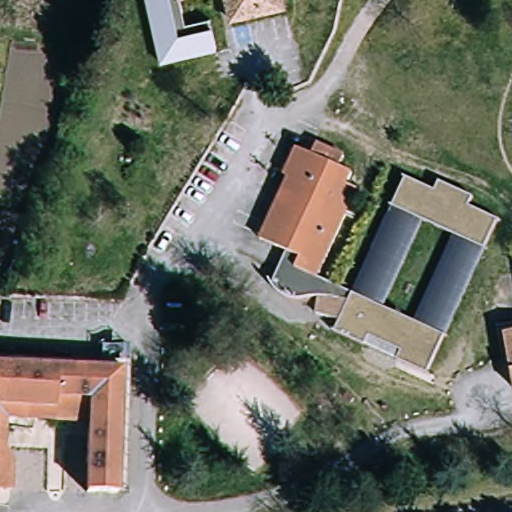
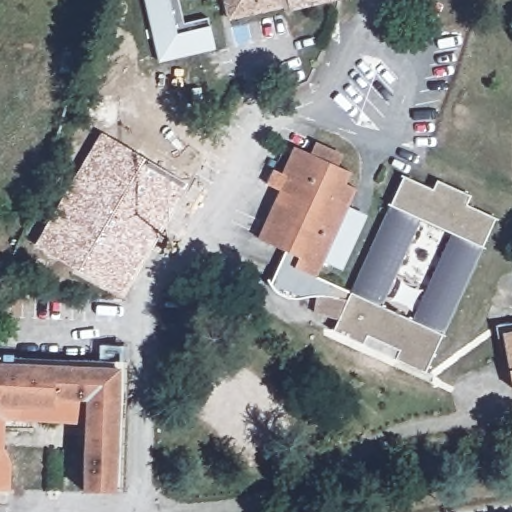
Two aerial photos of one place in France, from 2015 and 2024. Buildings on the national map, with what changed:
unchanged [(160,64),(145,0),(178,0),(184,24),(210,18),(216,50),(160,64)]
unchanged [(231,0),(286,0),(288,5),(235,20),(231,0)]
new [(286,12),(285,5),(288,5),(286,0),(341,0),(286,12)]
new [(121,296),(35,246),(101,132),(188,182),(121,296)]
unchanged [(293,262),(298,254),(288,249),(262,238),(294,147),(312,154),(317,145),(345,154),(342,166),(355,171),(349,187),(360,189),(318,273),(293,262)]
unchanged [(358,291),(413,182),(442,195),(445,185),(483,200),(479,210),(509,222),(435,381),(338,338),(354,309),(336,304),(325,304),(303,307),(287,301),(281,295),(273,281),(288,249),(298,254),(293,262),(318,273),(358,291)]
unchanged [(504,335),(512,334),(512,385),(504,335)]
unchanged [(123,490),(92,489),(90,425),(3,423),(1,490),(0,489),(0,360),(126,365),(123,490)]

